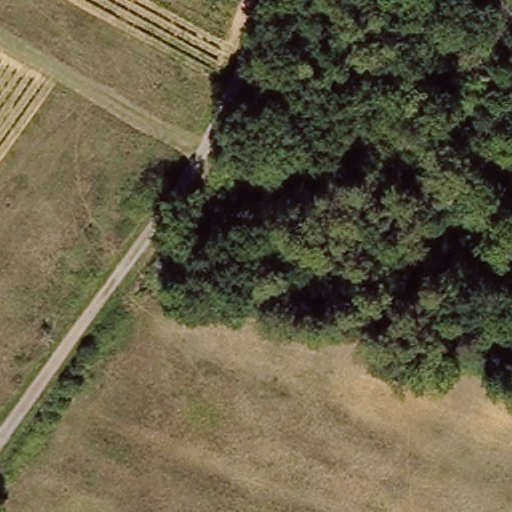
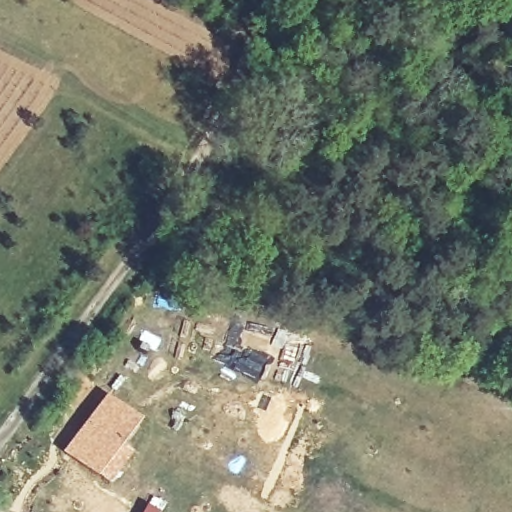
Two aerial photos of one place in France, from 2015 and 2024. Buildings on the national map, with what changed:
new [(106,394),(140,422),(96,479),(60,452),(106,394)]
new [(151,495),(166,503),(161,512),(142,512),(151,495)]

